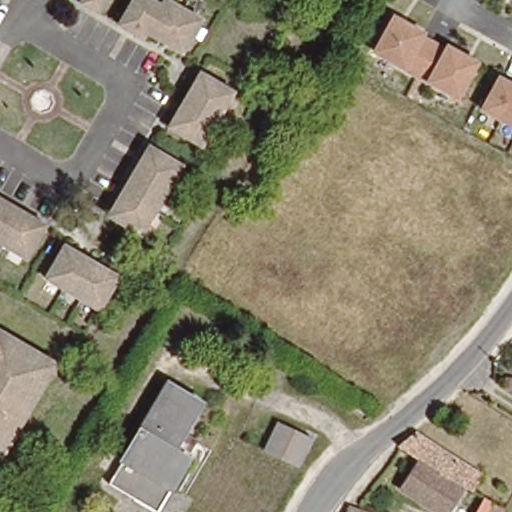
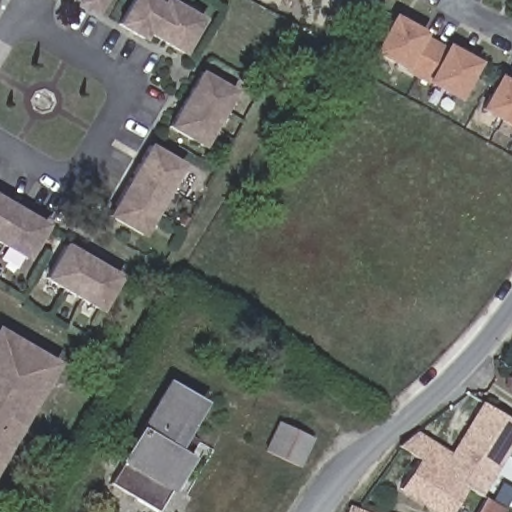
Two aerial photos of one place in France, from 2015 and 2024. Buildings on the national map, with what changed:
unchanged [(98,15),(81,5),(85,0),(107,0),(98,15)]
unchanged [(198,19),(202,21),(182,55),(179,53),(146,34),(143,40),(118,26),(133,0),(150,0),(161,6),(165,0),(166,0),(198,19)]
unchanged [(375,52),(396,17),(424,34),(449,48),(477,65),(457,100),(428,82),(404,69),(375,52)]
unchanged [(237,92),(205,147),(172,127),(204,73),(237,92)]
unchanged [(512,83),(512,124),(481,106),(499,75),(512,83)]
unchanged [(182,165),(155,210),(140,235),(107,215),(123,189),(148,145),(182,165)]
unchanged [(27,257),(0,242),(0,197),(46,224),(27,257)]
unchanged [(120,275),(100,308),(46,277),(65,244),(120,275)]
unchanged [(57,365),(0,463),(0,344),(5,335),(57,365)]
unchanged [(197,455),(166,512),(165,512),(111,481),(166,381),(195,397),(172,442),(197,455)]
new [(483,402),(512,420),(512,445),(481,495),(467,488),(462,485),(473,469),(459,460),(463,455),(453,449),(483,402)]
unchanged [(269,452),(282,422),(312,434),(299,465),(269,452)]
unchanged [(421,459),(398,445),(420,427),(463,455),(459,460),(473,469),(462,485),(421,459)]
unchanged [(421,459),(462,485),(467,488),(451,512),(442,512),(437,509),(401,485),(421,459)]
unchanged [(498,512),(475,512),(484,499),(500,510),(498,512)]
unchanged [(380,512),(352,512),(355,504),(380,512)]

